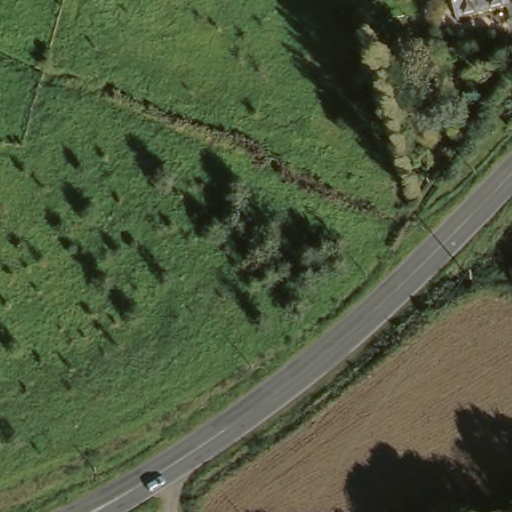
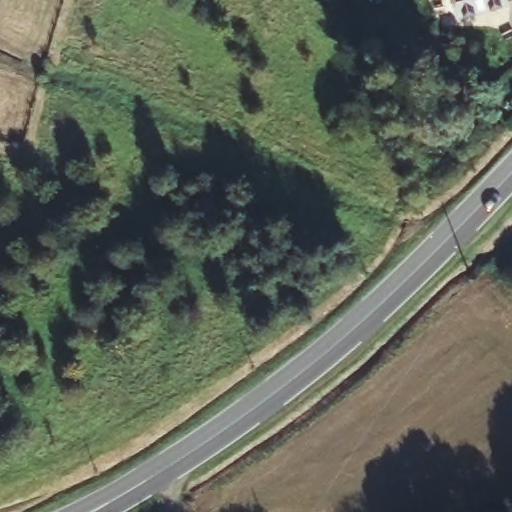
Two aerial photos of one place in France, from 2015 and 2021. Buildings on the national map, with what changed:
unchanged [(457,17),(452,0),(507,0),(508,5),(457,17)]

